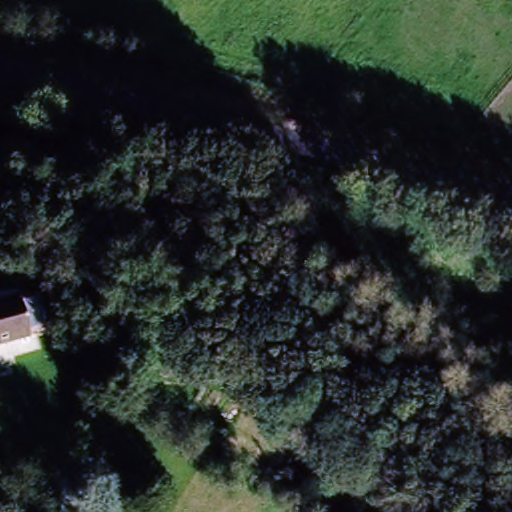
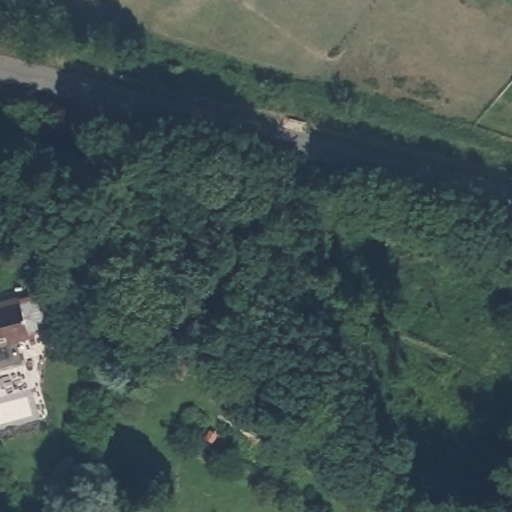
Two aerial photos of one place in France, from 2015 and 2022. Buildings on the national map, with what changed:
unchanged [(30,337),(0,345),(0,300),(18,295),(30,337)]
unchanged [(197,445),(175,430),(186,414),(207,428),(197,445)]

